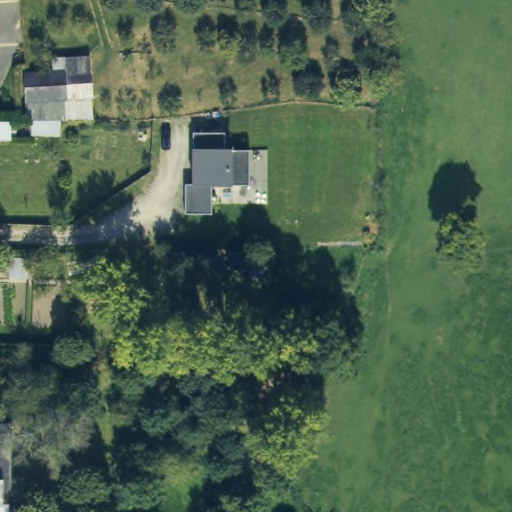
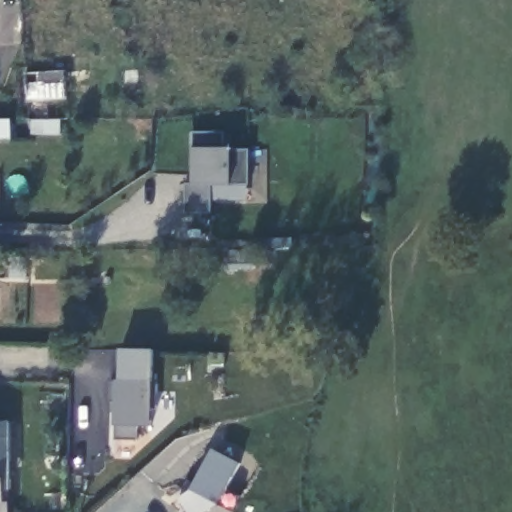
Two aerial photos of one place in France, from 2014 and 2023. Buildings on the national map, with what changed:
unchanged [(93,120),(60,118),(59,136),(28,136),(30,120),(23,121),(24,72),(53,72),(51,56),(90,56),(93,100),(93,120)]
unchanged [(248,187),(211,187),(211,216),(183,216),(183,184),(191,185),(191,135),(224,135),(224,150),(230,150),(249,150),(248,187)]
demolished [(6,142),(6,160),(0,160),(0,142),(6,142)]
new [(155,351),(154,427),(138,427),(137,440),(117,440),(117,427),(118,402),(111,402),(111,381),(120,381),(121,350),(155,351)]
unchanged [(10,427),(10,512),(0,512),(0,427),(10,427)]
new [(209,512),(186,512),(177,499),(191,488),(210,449),(238,463),(222,503),(209,512)]

